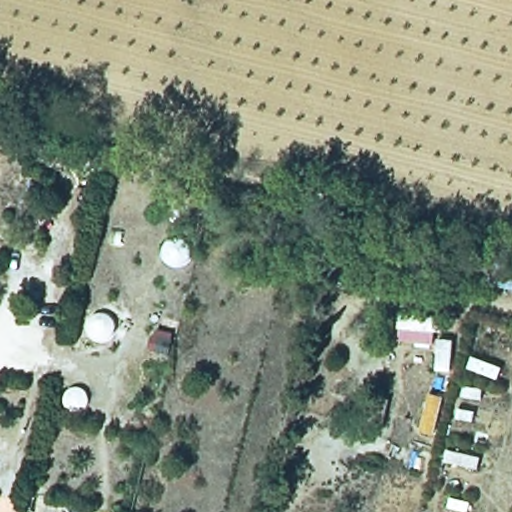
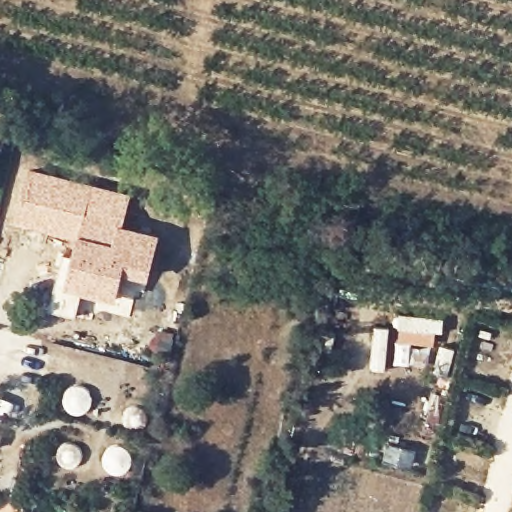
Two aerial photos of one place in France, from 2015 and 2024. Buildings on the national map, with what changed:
new [(63,285),(76,239),(13,220),(29,166),(133,192),(124,223),(161,232),(149,279),(124,273),(117,299),(83,291),(77,315),(51,309),(58,284),(63,285)]
demolished [(359,263),(369,234),(444,248),(438,281),(359,263)]

